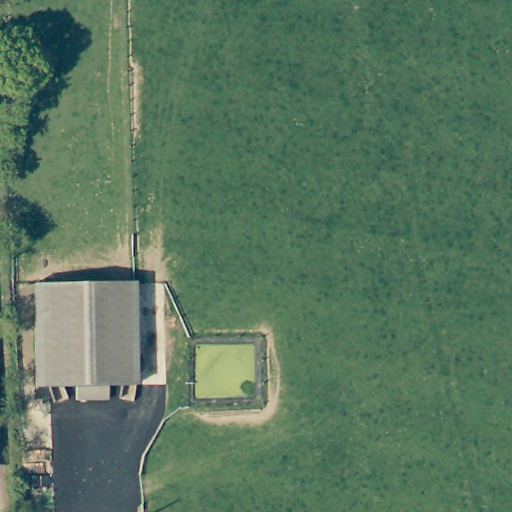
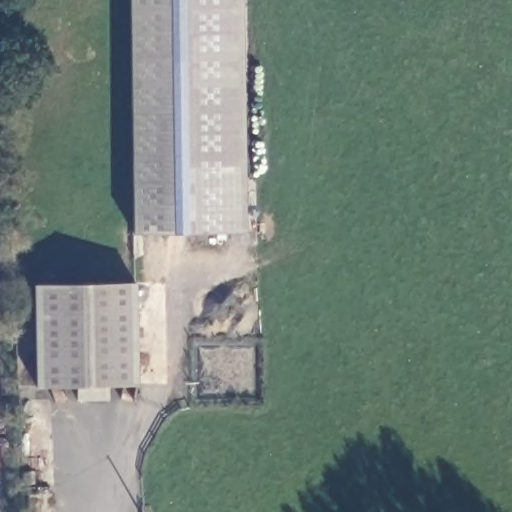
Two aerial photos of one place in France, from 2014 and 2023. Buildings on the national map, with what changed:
new [(130,0),(241,0),(245,231),(133,232),(130,0)]
unchanged [(30,282),(129,281),(131,383),(30,384),(30,282)]

